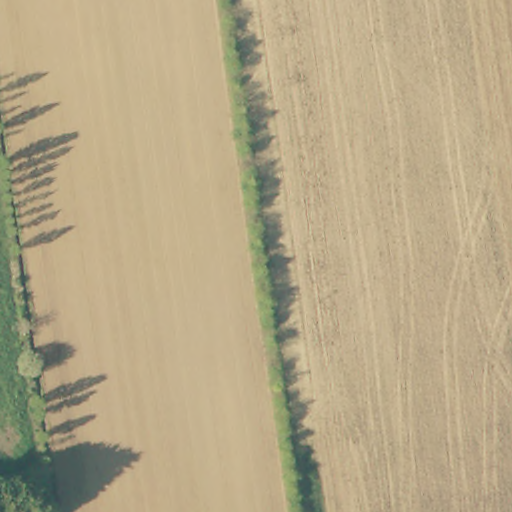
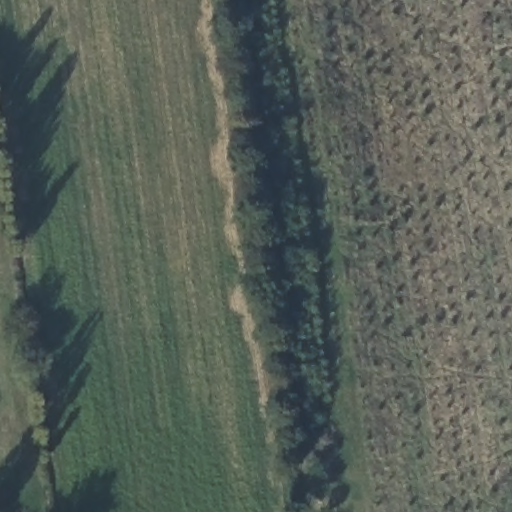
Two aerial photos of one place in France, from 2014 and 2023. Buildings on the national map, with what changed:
[]

